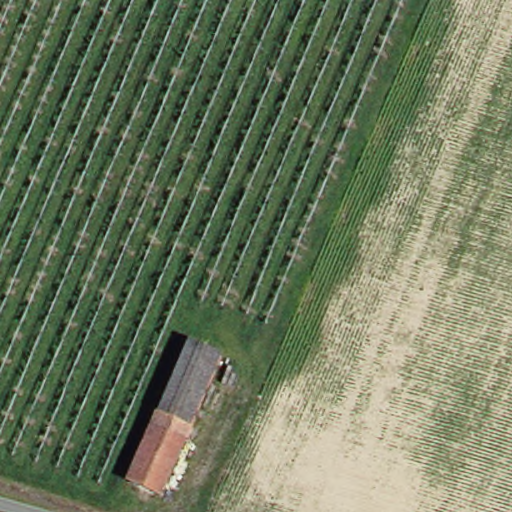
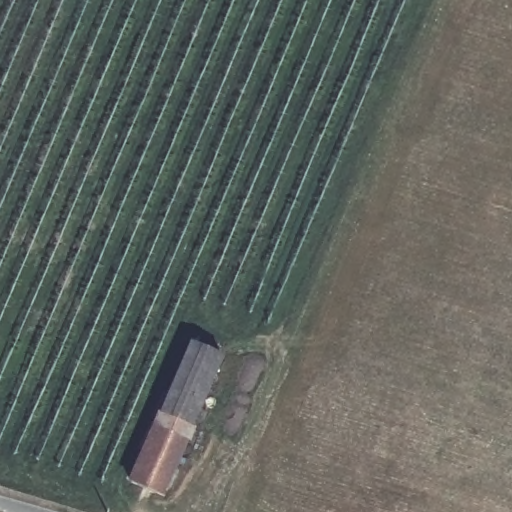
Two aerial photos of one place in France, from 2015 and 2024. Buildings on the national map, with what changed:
unchanged [(170,497),(138,483),(196,345),(227,359),(199,429),(170,497)]

